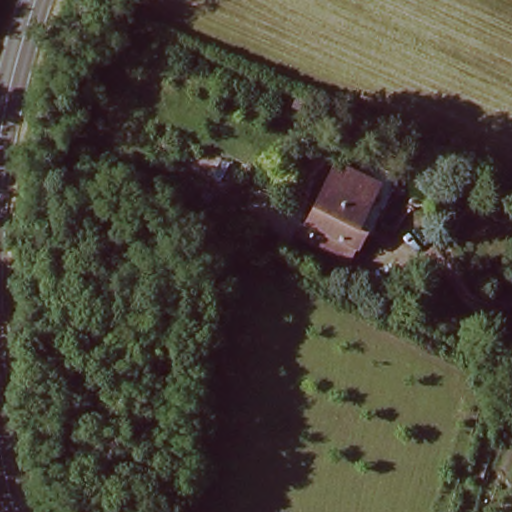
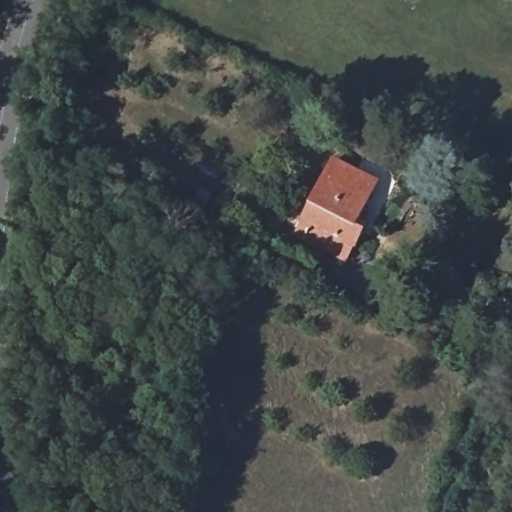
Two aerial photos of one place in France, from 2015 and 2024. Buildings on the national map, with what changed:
unchanged [(288,108),(294,96),(311,104),(306,116),(288,108)]
unchanged [(295,237),(333,162),(378,184),(359,221),(367,225),(364,232),(364,235),(355,249),(354,248),(345,266),(295,237)]
unchanged [(241,224),(257,191),(276,201),(260,233),(241,224)]

